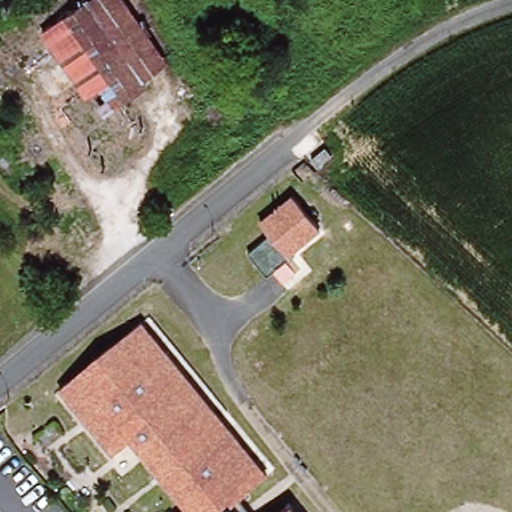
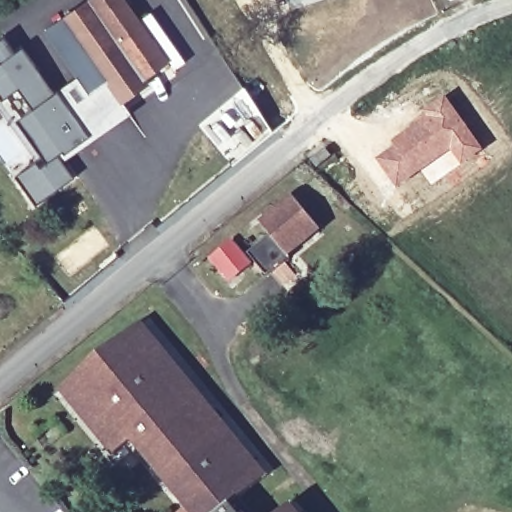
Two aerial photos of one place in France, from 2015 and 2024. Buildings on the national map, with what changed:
unchanged [(40,34),(89,0),(122,0),(166,64),(142,82),(146,88),(101,119),(40,34)]
new [(290,10),(287,0),(320,0),(290,10)]
new [(18,50),(50,96),(54,94),(87,140),(60,159),(58,156),(55,159),(72,181),(32,209),(11,180),(32,165),(37,170),(42,167),(12,125),(27,113),(14,93),(0,104),(0,40),(11,56),(18,50)]
new [(420,173),(397,189),(375,159),(393,145),(391,142),(445,95),(483,148),(460,165),(429,186),(420,173)]
unchanged [(326,216),(290,244),(293,248),(262,272),(239,242),(305,189),(326,216)]
unchanged [(177,362),(92,429),(56,385),(96,348),(140,319),(177,362)]
unchanged [(130,438),(110,452),(92,429),(177,362),(268,474),(240,498),(251,512),(176,512),(185,505),(130,438)]
unchanged [(301,512),(278,512),(292,501),(301,512)]

